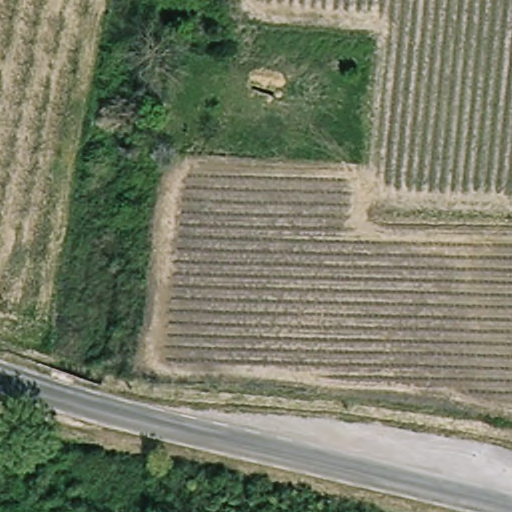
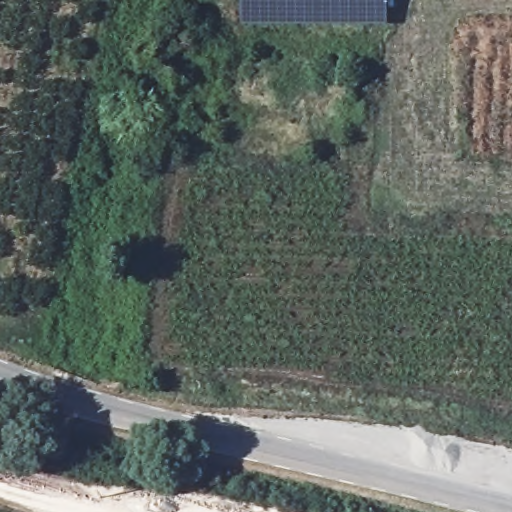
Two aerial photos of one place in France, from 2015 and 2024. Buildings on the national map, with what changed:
new [(241,26),(241,0),(385,0),(385,26),(241,26)]

